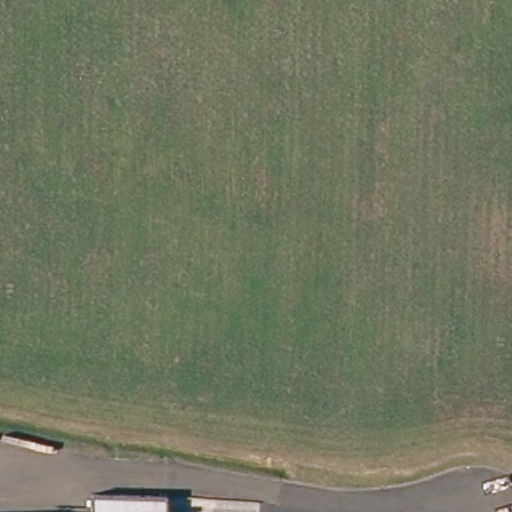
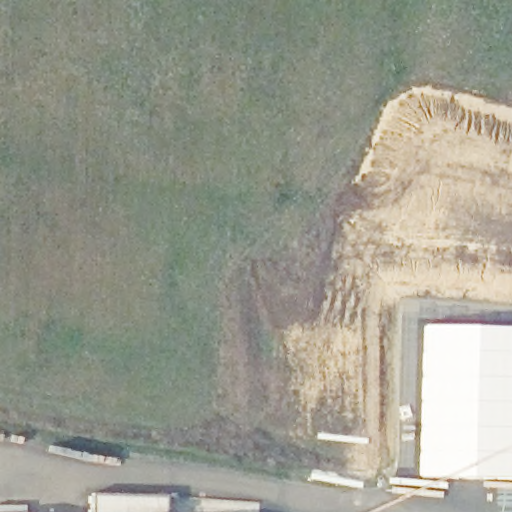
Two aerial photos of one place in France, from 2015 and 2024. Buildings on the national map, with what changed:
new [(424,325),(512,327),(512,480),(418,477),(424,325)]
unchanged [(161,490),(162,512),(88,512),(87,491),(161,490)]

